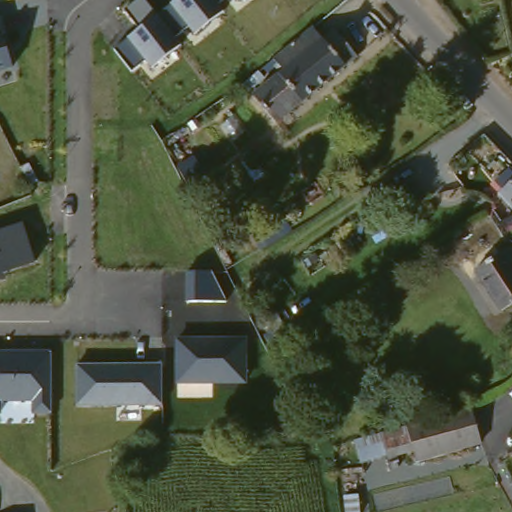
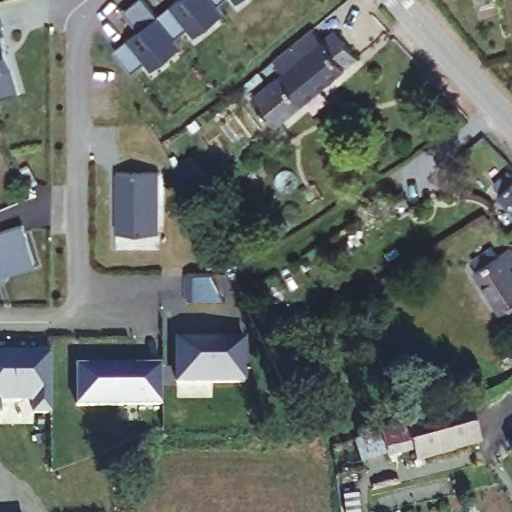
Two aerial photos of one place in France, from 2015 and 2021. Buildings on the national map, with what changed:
unchanged [(132,72),(115,49),(140,30),(123,11),(138,0),(145,0),(155,14),(174,0),(223,0),(218,5),(224,13),(195,36),(189,28),(175,40),(180,48),(150,68),(145,62),(132,72)]
unchanged [(237,0),(239,0),(237,1),(237,0)]
unchanged [(14,69),(0,73),(0,18),(2,18),(14,69)]
unchanged [(340,30),(360,51),(277,121),(257,97),(287,71),(276,60),(318,26),(329,38),(340,30)]
unchanged [(502,184),(490,172),(483,177),(476,169),(498,148),(512,163),(512,175),(502,184)]
new [(116,170),(159,172),(160,232),(116,233),(116,170)]
unchanged [(511,207),(506,212),(495,199),(512,182),(512,207),(511,207)]
unchanged [(37,263),(2,274),(5,280),(0,281),(0,231),(24,225),(37,263)]
unchanged [(502,258),(510,253),(512,255),(512,272),(510,274),(512,276),(512,308),(498,316),(468,267),(484,256),(496,250),(502,258)]
unchanged [(185,271),(212,274),(227,302),(184,302),(185,271)]
unchanged [(175,338),(245,340),(247,385),(175,384),(175,338)]
unchanged [(52,415),(32,415),(31,403),(0,403),(0,352),(52,353),(52,415)]
unchanged [(77,365),(162,364),(163,408),(77,408),(77,365)]
unchanged [(465,447),(396,459),(396,452),(370,457),(370,429),(460,412),(465,447)]
unchanged [(507,444),(510,440),(512,438),(512,451),(507,444)]
unchanged [(360,492),(362,512),(343,512),(341,495),(360,492)]

